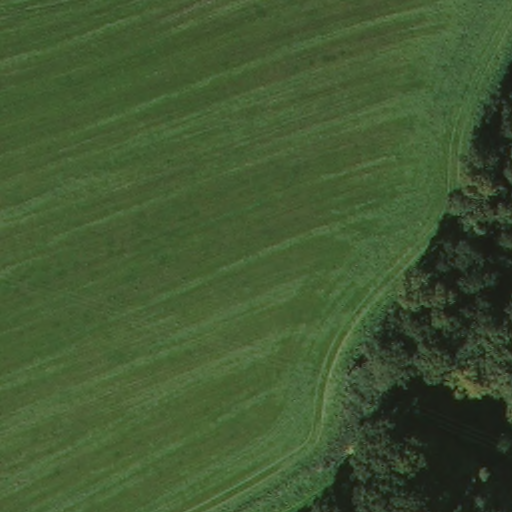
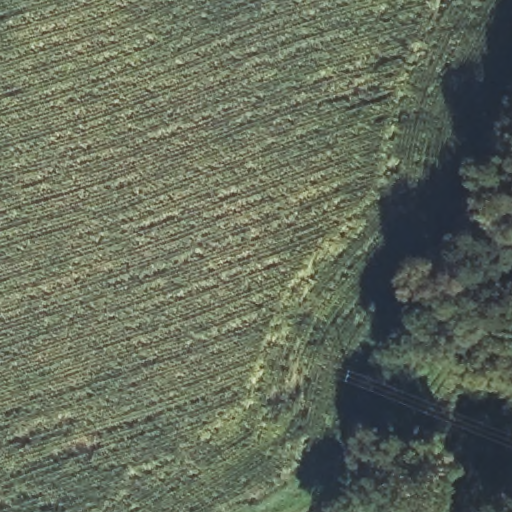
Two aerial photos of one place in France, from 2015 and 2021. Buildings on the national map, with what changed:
[]

